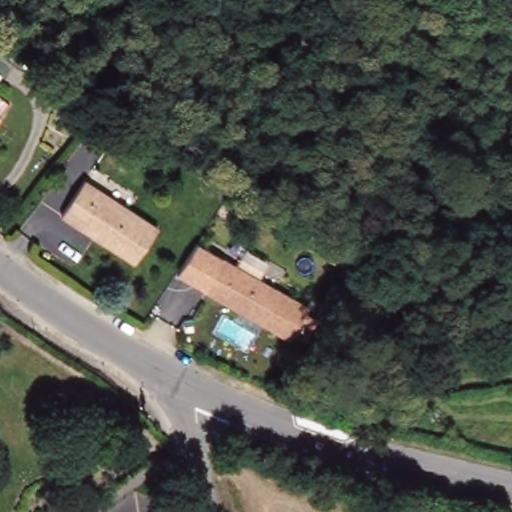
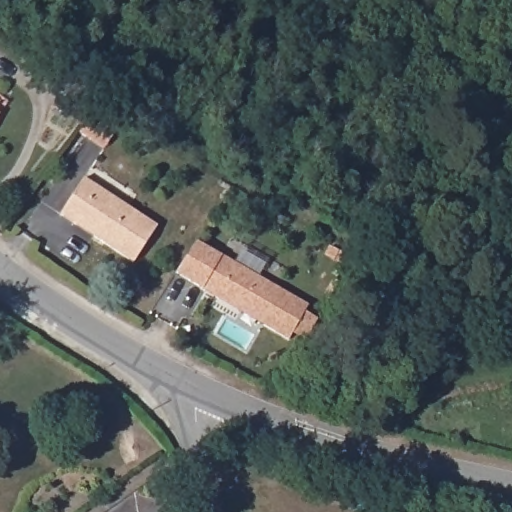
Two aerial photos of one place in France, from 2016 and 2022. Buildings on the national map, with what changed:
unchanged [(0,116),(0,95),(10,104),(0,116)]
unchanged [(160,224),(138,261),(64,217),(87,180),(160,224)]
unchanged [(202,288),(175,274),(196,239),(224,254),(202,288)]
unchanged [(311,304),(292,341),(202,288),(224,254),(311,304)]

